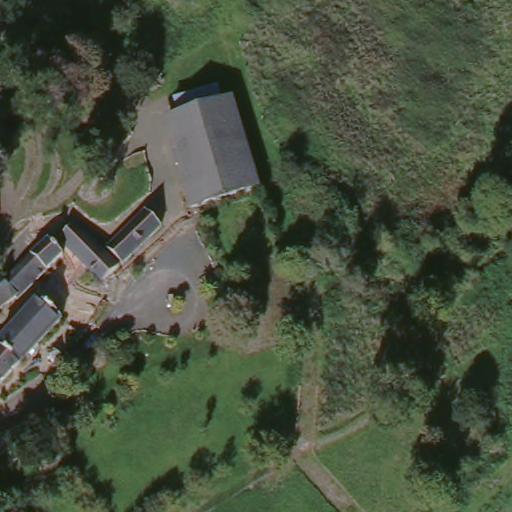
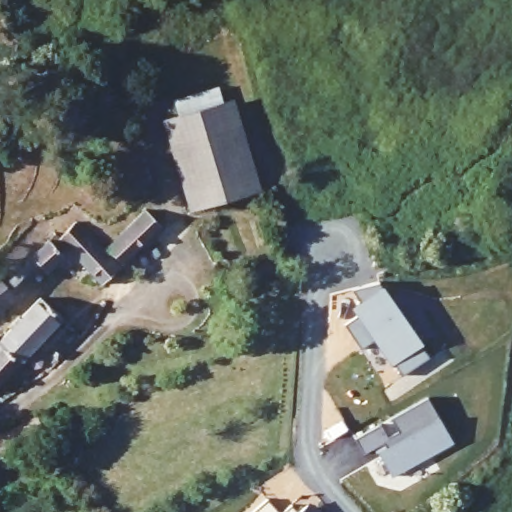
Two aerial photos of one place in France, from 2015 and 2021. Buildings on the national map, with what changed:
unchanged [(184,217),(154,125),(174,119),(167,95),(215,82),(256,186),(184,217)]
unchanged [(140,218),(158,238),(124,268),(106,249),(140,218)]
unchanged [(52,242),(72,225),(117,274),(97,290),(52,242)]
unchanged [(61,265),(10,308),(5,303),(0,308),(0,289),(46,248),(61,265)]
new [(427,354),(399,373),(374,337),(362,346),(344,320),(362,310),(348,288),(377,279),(427,354)]
unchanged [(42,305),(60,323),(0,388),(0,345),(2,346),(42,305)]
new [(381,421),(387,433),(397,427),(390,414),(428,395),(439,416),(453,440),(391,474),(377,450),(374,445),(360,452),(355,435),(381,421)]
unchanged [(32,423),(36,428),(40,437),(0,459),(0,442),(17,432),(32,423)]
new [(265,497),(279,512),(249,512),(265,497)]
new [(290,503),(297,510),(305,504),(313,512),(280,512),(290,503)]

